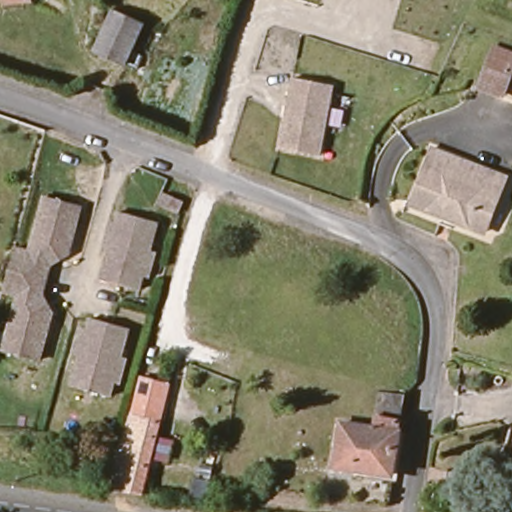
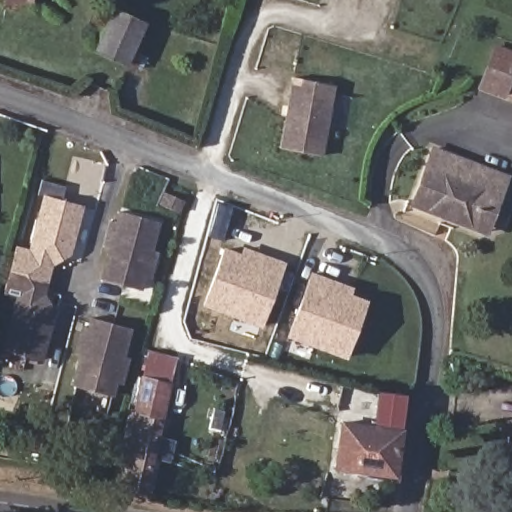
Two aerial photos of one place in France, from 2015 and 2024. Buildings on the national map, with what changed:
unchanged [(150,25),(132,67),(99,54),(117,12),(150,25)]
unchanged [(500,46),(512,52),(512,71),(499,96),(480,87),(500,46)]
unchanged [(291,71),(331,78),(319,149),(279,142),(291,71)]
unchanged [(432,210),(415,201),(441,147),(485,168),(512,181),(512,183),(504,198),(485,235),(457,221),(432,210)]
unchanged [(32,247),(45,193),(82,202),(71,248),(60,245),(54,251),(41,298),(45,307),(54,309),(41,355),(5,345),(20,291),(5,287),(16,243),(32,247)]
unchanged [(158,217),(140,286),(102,275),(120,207),(158,217)]
new [(285,261),(260,328),(202,306),(223,246),(239,252),(242,245),(285,261)]
new [(352,286),(350,293),(367,300),(345,359),(286,337),(310,272),(352,286)]
unchanged [(126,323),(107,392),(69,381),(87,314),(126,323)]
unchanged [(117,491),(137,417),(140,418),(148,384),(175,391),(167,423),(149,495),(117,491)]
unchanged [(378,392),(405,396),(399,434),(373,430),(378,392)]
unchanged [(399,434),(393,478),(336,470),(342,426),(373,430),(399,434)]

